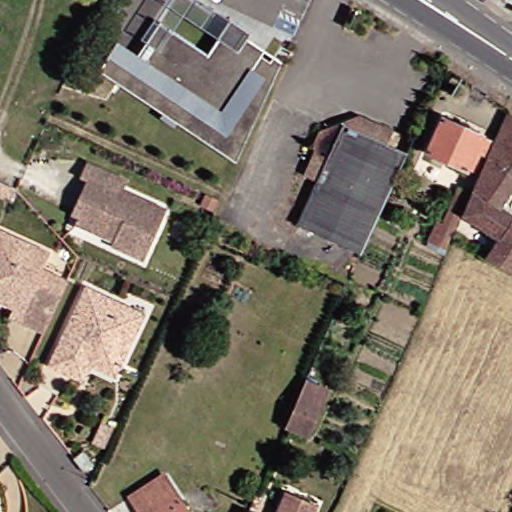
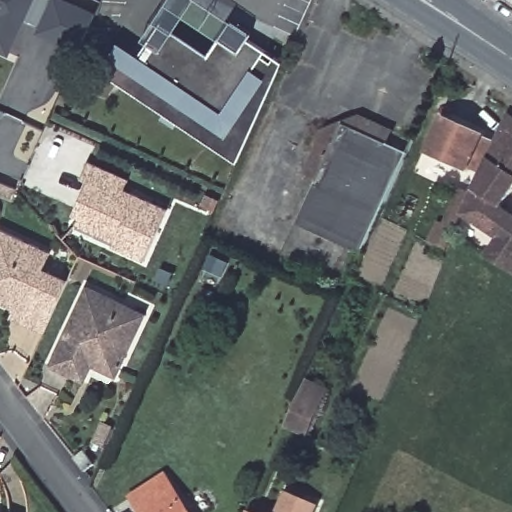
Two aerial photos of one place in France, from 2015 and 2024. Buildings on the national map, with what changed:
new [(40,31),(21,22),(7,51),(0,48),(0,0),(62,0),(95,15),(79,49),(40,31)]
demolished [(270,0),(287,0),(282,7),(270,0)]
unchanged [(112,43),(130,56),(150,28),(155,22),(190,47),(201,55),(215,36),(228,17),(239,25),(248,32),(244,38),(277,62),(232,162),(96,71),(112,43)]
unchanged [(487,258),(502,235),(460,217),(506,112),(512,117),(512,277),(487,258)]
unchanged [(476,175),(466,171),(425,154),(440,119),(481,137),(491,142),(476,175)]
unchanged [(321,136),(355,122),(387,136),(376,161),(321,136)]
unchanged [(307,157),(306,155),(305,152),(304,151),(304,147),(305,145),(305,144),(307,142),(307,141),(310,139),(311,139),(312,139),(314,138),(316,138),(318,139),(319,139),(321,136),(376,161),(387,136),(408,146),(378,212),(358,258),(293,229),(313,184),(301,179),(310,159),(310,158),(307,157)]
unchanged [(107,251),(112,239),(75,222),(90,189),(76,182),(82,167),(123,185),(119,194),(162,214),(140,265),(107,251)]
unchanged [(5,201),(0,198),(0,183),(11,188),(5,201)]
unchanged [(466,195),(441,254),(423,246),(433,223),(440,226),(456,191),(466,195)]
unchanged [(0,305),(0,232),(45,252),(37,268),(63,280),(57,295),(39,333),(19,324),(6,318),(9,310),(0,305)]
unchanged [(66,376),(47,367),(82,287),(141,313),(112,377),(90,367),(84,378),(82,382),(66,376)]
unchanged [(283,427),(297,396),(302,382),(322,390),(317,405),(303,436),(283,427)]
unchanged [(92,470),(83,477),(73,463),(82,456),(92,470)]
unchanged [(188,512),(140,512),(131,497),(165,476),(188,512)]
unchanged [(281,492),(312,506),(310,512),(272,512),(281,492)]

